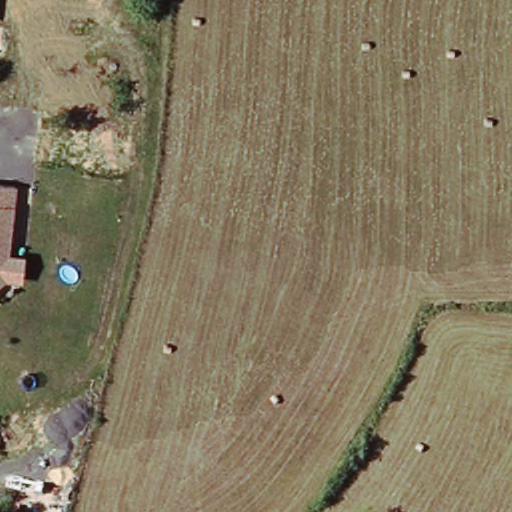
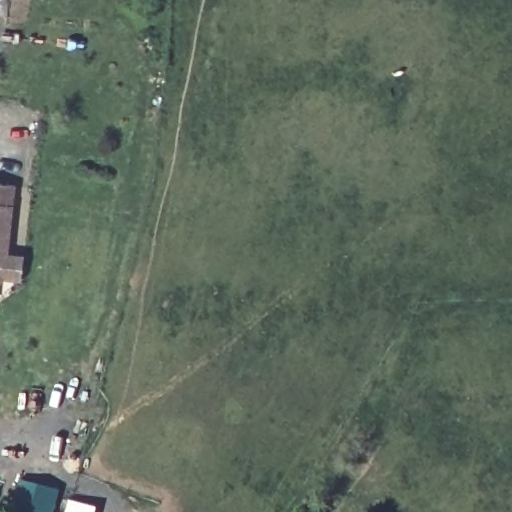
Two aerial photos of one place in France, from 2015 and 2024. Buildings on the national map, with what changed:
unchanged [(12,200),(6,252),(24,254),(21,275),(4,273),(0,277),(0,198),(12,200)]
new [(57,512),(12,512),(21,478),(63,488),(57,512)]

